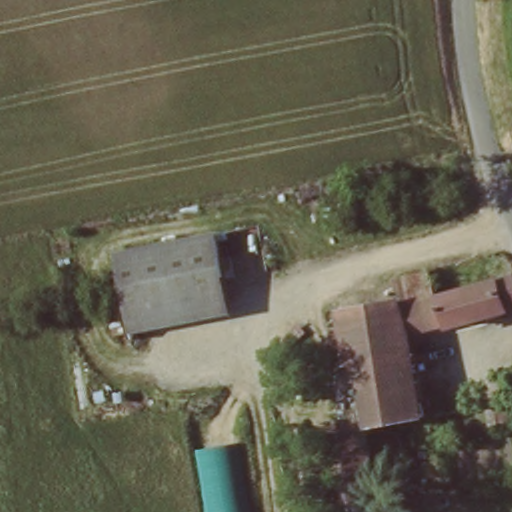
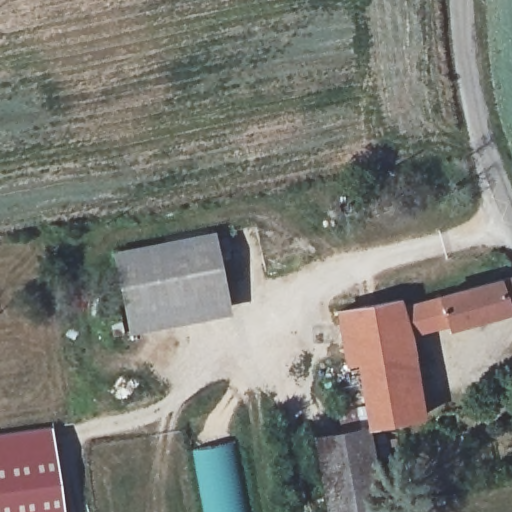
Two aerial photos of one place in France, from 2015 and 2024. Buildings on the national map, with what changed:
unchanged [(110,252),(214,230),(234,322),(127,336),(110,252)]
unchanged [(357,372),(355,372),(343,374),(341,358),(336,312),(398,299),(400,305),(512,279),(512,311),(457,326),(410,338),(421,418),(365,427),(359,389),(357,372)]
new [(53,427),(64,512),(0,512),(0,434),(53,427)]
unchanged [(196,449),(238,443),(253,512),(209,512),(196,449)]

